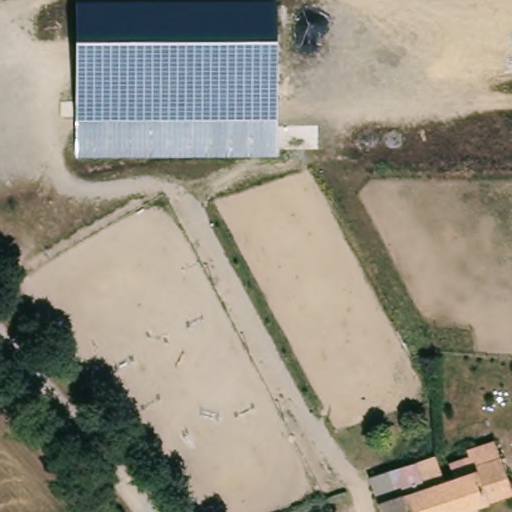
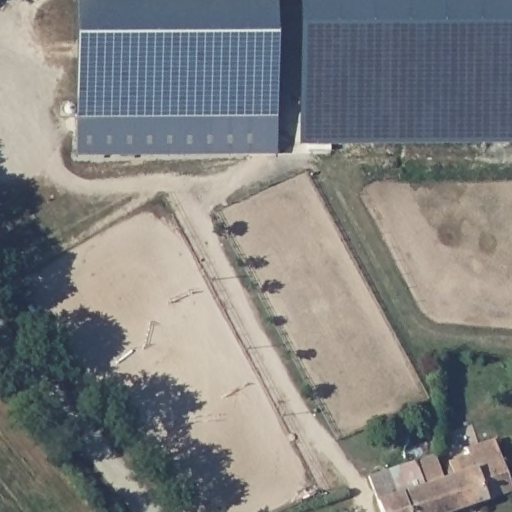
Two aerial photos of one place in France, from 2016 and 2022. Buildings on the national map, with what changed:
unchanged [(74,0),(275,0),(278,151),(80,151),(74,0)]
new [(303,1),(512,2),(512,146),(301,148),(303,1)]
unchanged [(370,472),(389,466),(435,452),(437,457),(443,478),(455,475),(452,463),(474,457),(471,448),(502,439),(512,470),(512,494),(451,512),(381,512),(377,497),(372,482),(370,472)]

